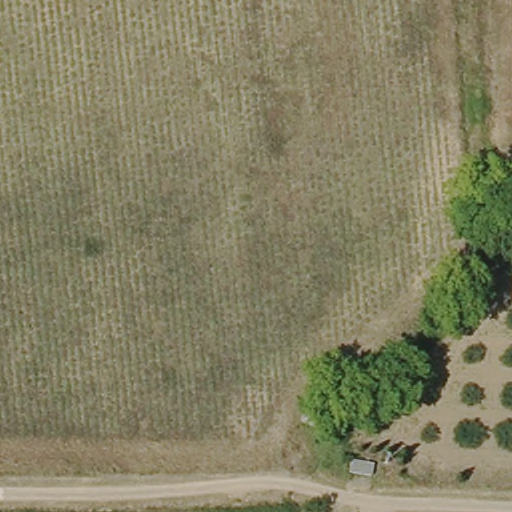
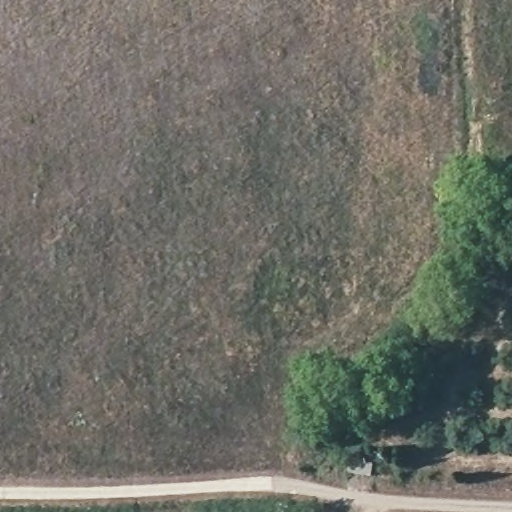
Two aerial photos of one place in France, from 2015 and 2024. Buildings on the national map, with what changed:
unchanged [(356,461),(381,464),(379,477),(354,476),(356,461)]

